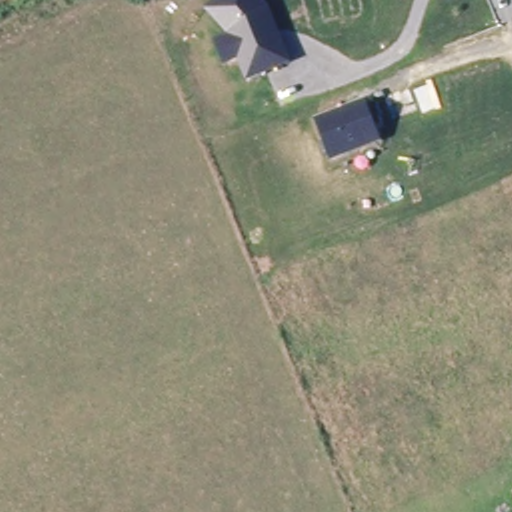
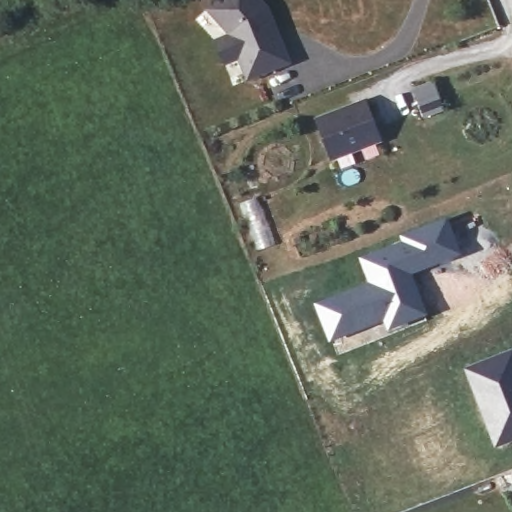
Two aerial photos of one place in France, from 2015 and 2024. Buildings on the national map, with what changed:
unchanged [(292,63),(247,82),(239,60),(224,67),(213,40),(229,35),(206,9),(216,0),(265,0),(270,5),(292,63)]
unchanged [(367,100),(382,144),(329,164),(314,120),(367,100)]
new [(366,280),(356,254),(376,246),(382,244),(410,230),(447,216),(463,256),(413,275),(429,317),(338,353),(335,343),(331,345),(313,302),(366,280)]
new [(512,349),(512,443),(495,448),(463,367),(512,349)]

